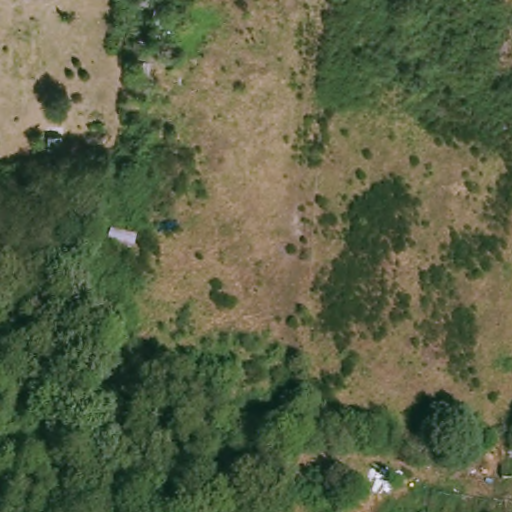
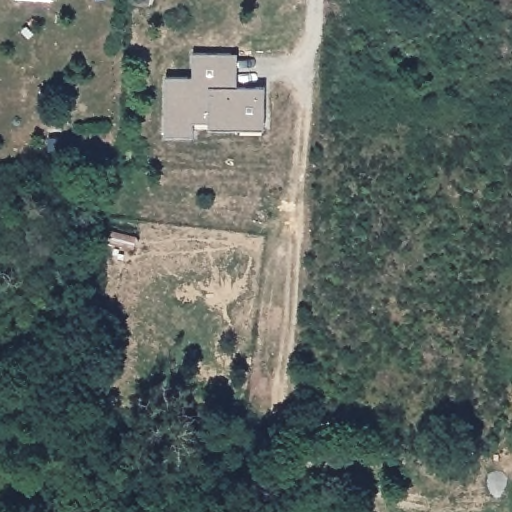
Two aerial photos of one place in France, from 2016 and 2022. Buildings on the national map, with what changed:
demolished [(129,21),(130,4),(152,7),(149,24),(129,21)]
new [(265,88),(264,128),(211,128),(211,121),(193,121),(193,136),(166,135),(168,76),(194,77),(194,53),(237,54),(237,86),(265,88)]

